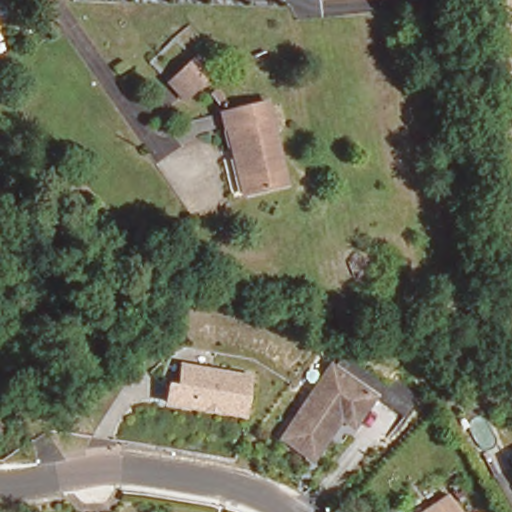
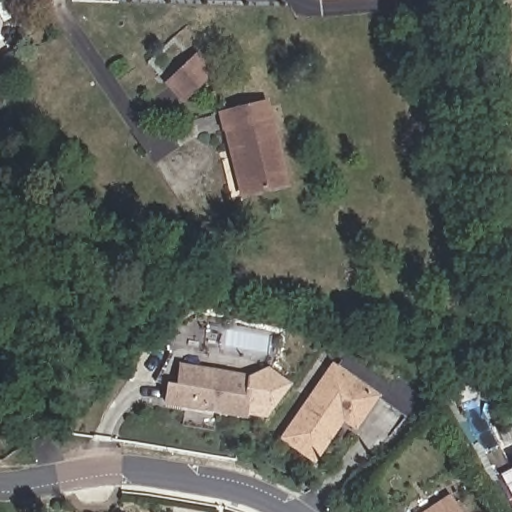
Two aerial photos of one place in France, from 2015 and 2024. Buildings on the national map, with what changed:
unchanged [(194,63),(209,80),(180,106),(164,90),(194,63)]
unchanged [(219,107),(224,116),(217,120),(212,111),(219,107)]
unchanged [(225,146),(220,130),(266,117),(286,199),(247,209),(242,210),(225,146)]
unchanged [(417,386),(408,398),(399,411),(376,395),(355,423),(343,415),(312,457),(282,435),(335,363),(337,365),(346,351),(390,385),(400,373),(417,386)]
new [(248,375),(268,366),(291,384),(265,418),(249,415),(252,391),(246,390),(248,375)]
unchanged [(177,416),(168,415),(171,399),(180,400),(184,380),(252,391),(246,429),(221,425),(209,422),(177,416)]
unchanged [(465,512),(425,512),(453,493),(465,512)]
unchanged [(338,512),(343,506),(346,503),(357,512),(338,512)]

